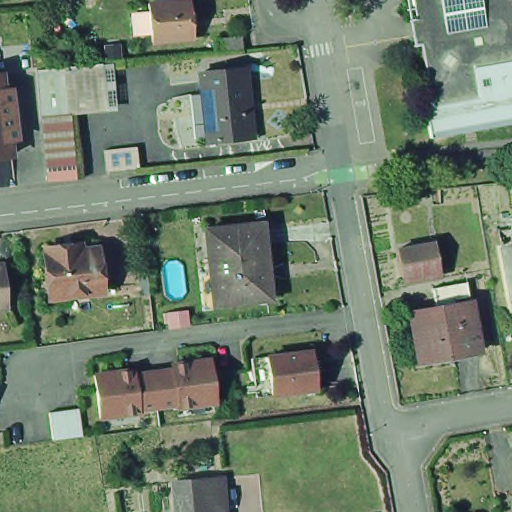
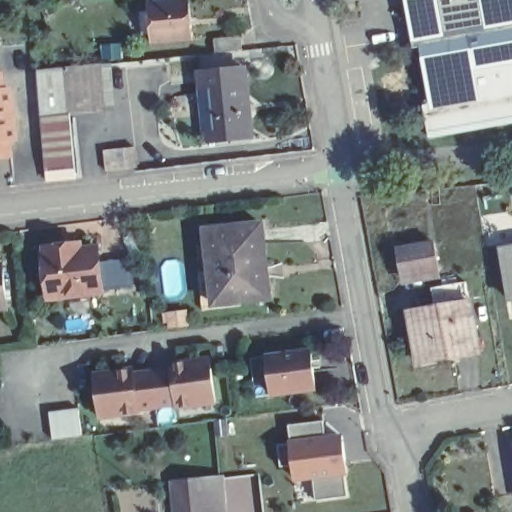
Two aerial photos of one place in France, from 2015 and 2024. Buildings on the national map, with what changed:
unchanged [(418,44),(411,45),(403,0),(512,0),(512,39),(418,44)]
unchanged [(188,6),(192,44),(152,48),(148,9),(188,6)]
unchanged [(215,53),(213,39),(241,36),(242,50),(215,53)]
unchanged [(418,44),(512,39),(512,66),(488,70),(473,67),(478,100),(430,107),(418,44)]
unchanged [(202,132),(197,90),(195,63),(240,58),(247,127),(209,132),(202,132)]
unchanged [(65,69),(100,65),(105,110),(80,113),(69,114),(65,69)]
unchanged [(422,108),(430,107),(478,100),(473,67),(488,70),(512,66),(512,124),(427,139),(422,108)]
unchanged [(43,116),(37,72),(65,69),(69,114),(43,116)]
unchanged [(9,87),(17,86),(18,99),(10,100),(12,111),(0,112),(0,71),(7,71),(9,87)]
unchanged [(13,122),(20,121),(22,134),(15,135),(17,151),(0,152),(0,112),(12,111),(13,122)]
unchanged [(43,116),(69,114),(80,113),(81,117),(77,117),(80,163),(47,167),(43,116)]
unchanged [(135,147),(137,168),(107,171),(105,150),(135,147)]
unchanged [(266,215),(270,253),(215,260),(211,221),(266,215)]
unchanged [(506,295),(496,246),(512,242),(512,293),(506,295)]
unchanged [(438,247),(443,277),(407,283),(402,254),(438,247)]
unchanged [(47,260),(45,254),(80,249),(80,255),(97,253),(103,298),(50,305),(44,260),(47,260)]
unchanged [(207,300),(203,263),(215,262),(215,260),(270,253),(274,289),(246,292),(247,296),(207,300)]
unchanged [(12,303),(0,304),(0,261),(7,261),(12,303)]
unchanged [(455,352),(420,359),(411,308),(436,303),(432,284),(465,277),(468,292),(453,295),(455,300),(470,297),(477,336),(479,347),(455,352)]
unchanged [(270,359),(312,354),(317,392),(275,399),(270,359)]
unchanged [(98,375),(210,359),(216,407),(105,421),(98,375)]
new [(78,409),(82,436),(53,440),(50,413),(78,409)]
new [(352,479),(290,486),(282,435),(277,423),(322,419),(325,433),(343,432),(352,479)]
unchanged [(173,478),(220,473),(224,512),(178,512),(176,499),(173,478)]

